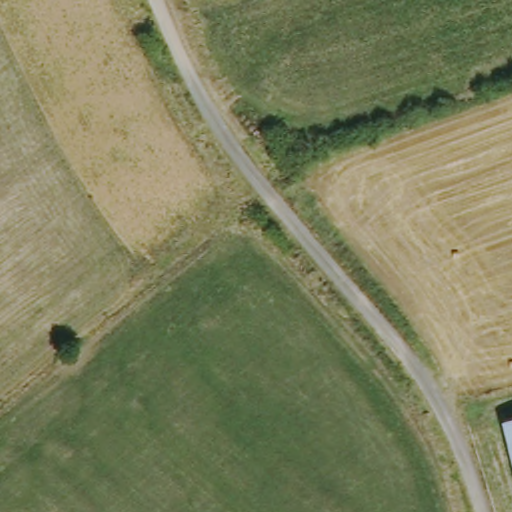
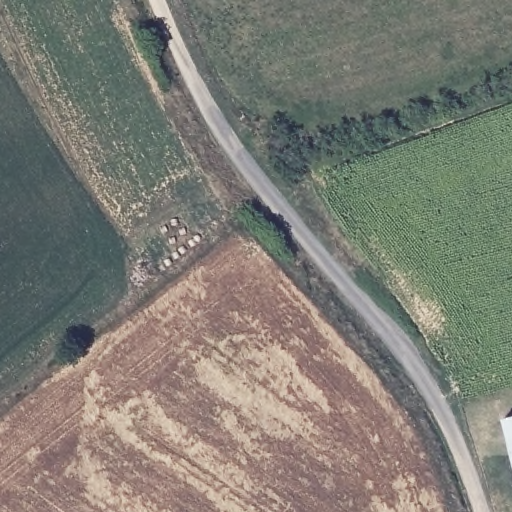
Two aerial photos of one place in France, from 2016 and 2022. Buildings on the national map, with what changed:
unchanged [(505,422),(512,420),(512,453),(505,422)]

